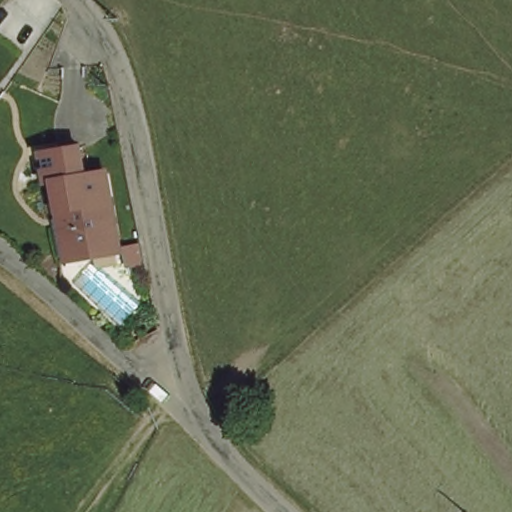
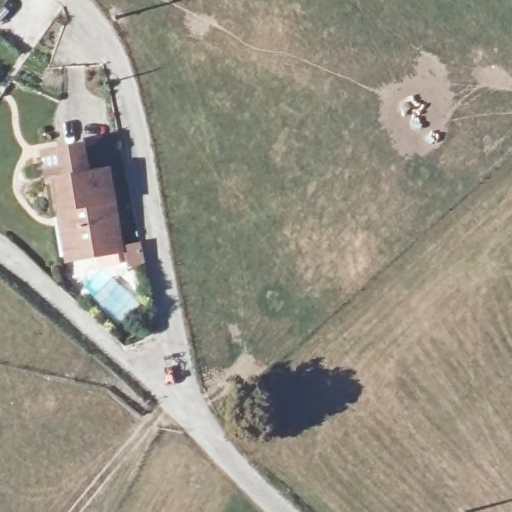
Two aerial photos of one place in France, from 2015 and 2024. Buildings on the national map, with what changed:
unchanged [(65,215),(58,184),(52,186),(46,156),(83,148),(89,178),(108,175),(125,252),(86,260),(75,262),(65,215)]

